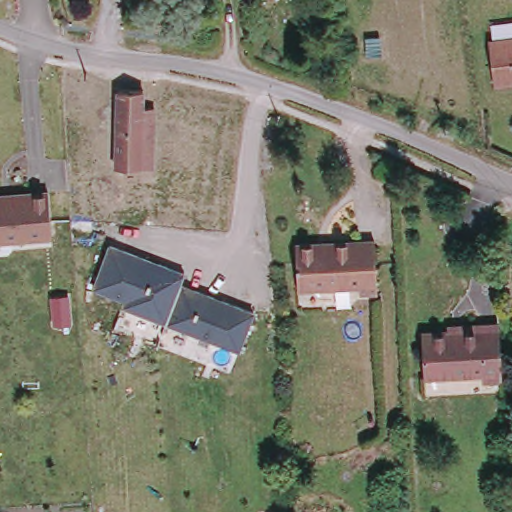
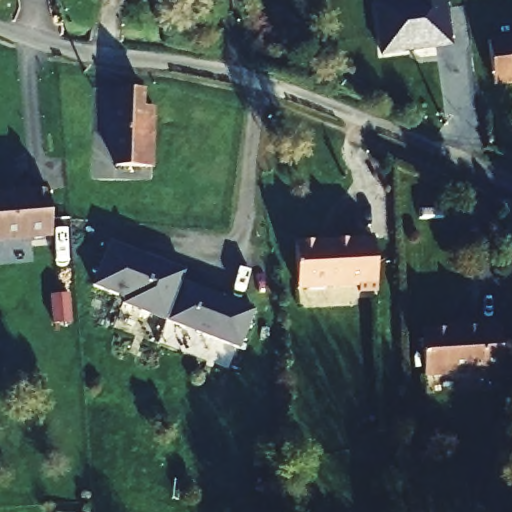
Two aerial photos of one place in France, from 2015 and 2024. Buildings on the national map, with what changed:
new [(453,46),(380,56),(373,0),(376,0),(447,0),(453,46)]
unchanged [(512,80),(502,81),(497,35),(512,33),(512,80)]
unchanged [(110,167),(115,89),(140,90),(140,105),(152,105),(147,169),(110,167)]
unchanged [(47,188),(51,235),(0,240),(0,192),(47,188)]
unchanged [(379,288),(360,290),(360,281),(298,285),(297,239),(357,236),(357,242),(376,242),(379,288)]
unchanged [(125,313),(127,309),(92,295),(112,245),(186,278),(167,330),(125,313)]
unchanged [(184,288),(257,313),(245,358),(167,330),(184,288)]
unchanged [(504,375),(484,375),(484,371),(425,373),(425,346),(432,346),(431,327),(485,326),(484,318),(502,317),(504,375)]

